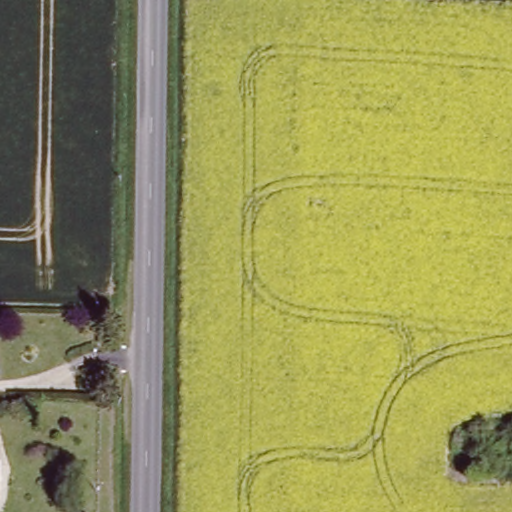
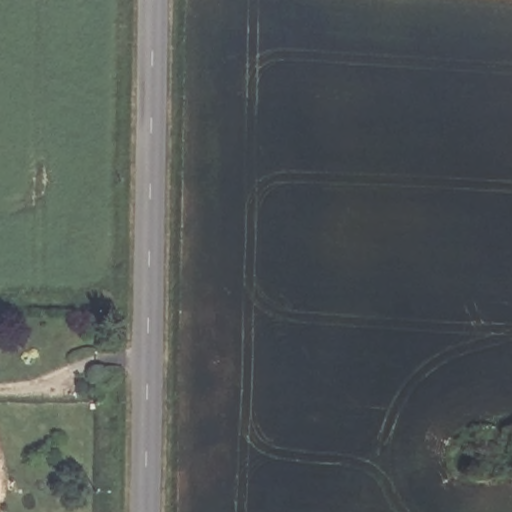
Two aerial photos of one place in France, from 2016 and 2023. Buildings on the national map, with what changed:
[]

